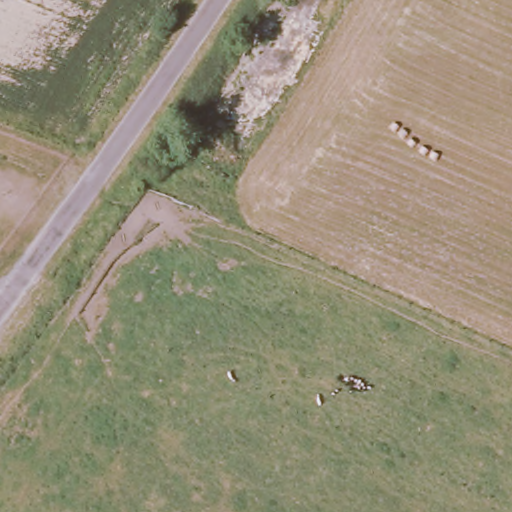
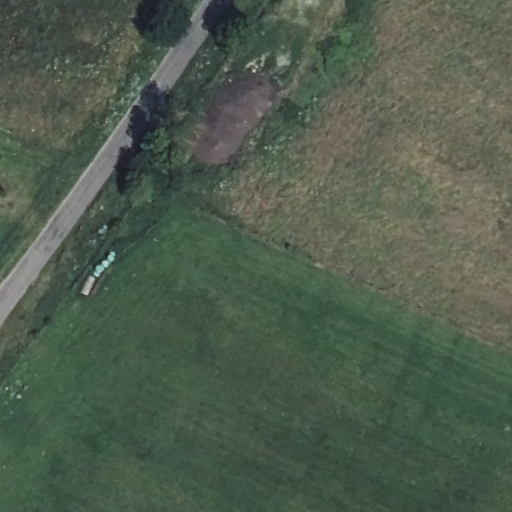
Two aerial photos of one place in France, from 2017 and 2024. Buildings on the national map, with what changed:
[]

